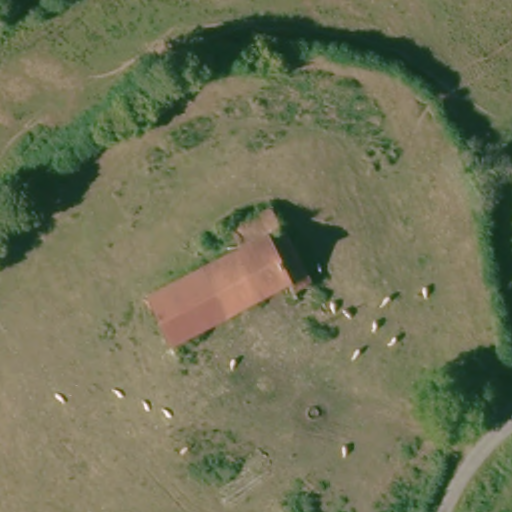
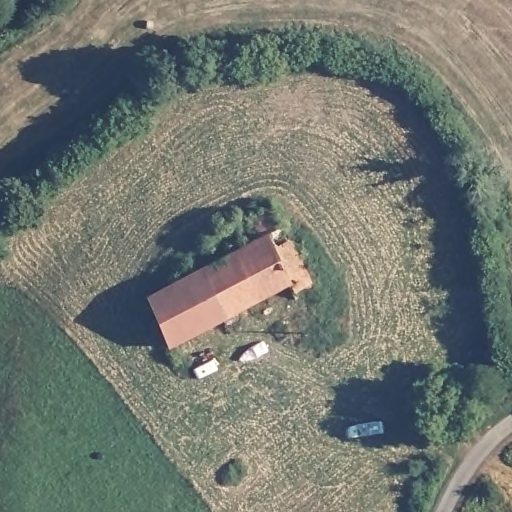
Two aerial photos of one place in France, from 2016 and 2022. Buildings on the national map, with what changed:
unchanged [(147,300),(210,267),(198,247),(275,209),(317,283),(297,293),(292,285),(173,348),(147,300)]

